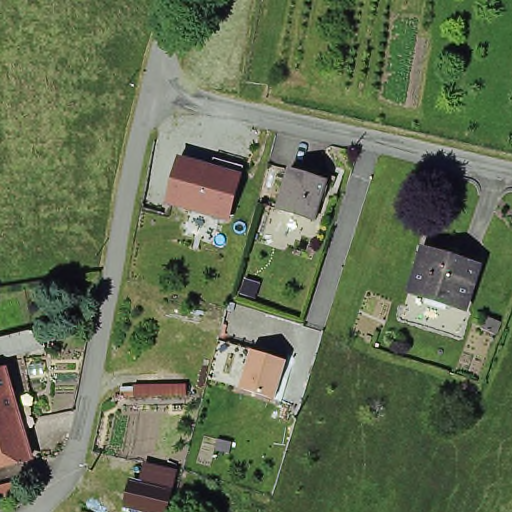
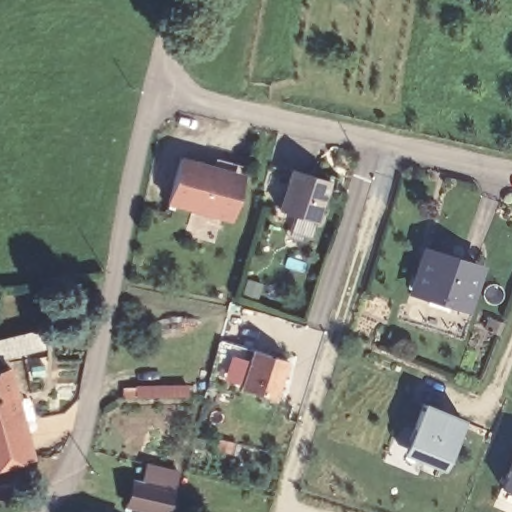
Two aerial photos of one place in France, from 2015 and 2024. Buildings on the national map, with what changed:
unchanged [(229,223),(163,204),(177,155),(212,164),(214,158),(244,166),(229,223)]
unchanged [(315,221),(305,218),(279,210),(291,169),(317,177),(327,180),(315,221)]
unchanged [(470,307),(417,291),(430,247),(483,262),(470,307)]
unchanged [(500,332),(486,327),(489,318),(503,322),(500,332)]
unchanged [(0,354),(0,338),(37,329),(40,344),(0,354)]
unchanged [(284,379),(292,381),(289,394),(280,392),(278,399),(245,391),(255,350),(289,360),(284,379)]
unchanged [(32,461),(0,469),(0,370),(7,369),(32,461)]
new [(443,471),(402,454),(423,402),(465,419),(443,471)]
unchanged [(134,511),(140,484),(150,487),(154,468),(182,474),(178,493),(174,512),(140,512),(134,511)]
new [(502,488),(512,468),(512,492),(502,488)]

